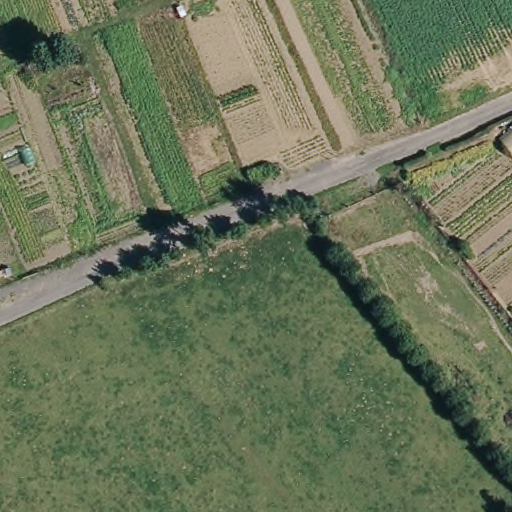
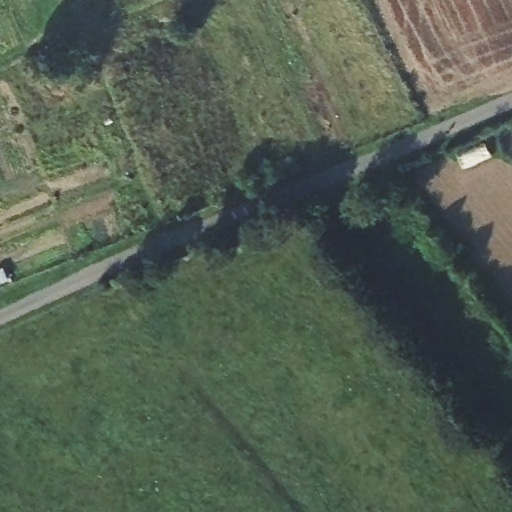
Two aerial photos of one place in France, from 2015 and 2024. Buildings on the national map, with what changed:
[]

